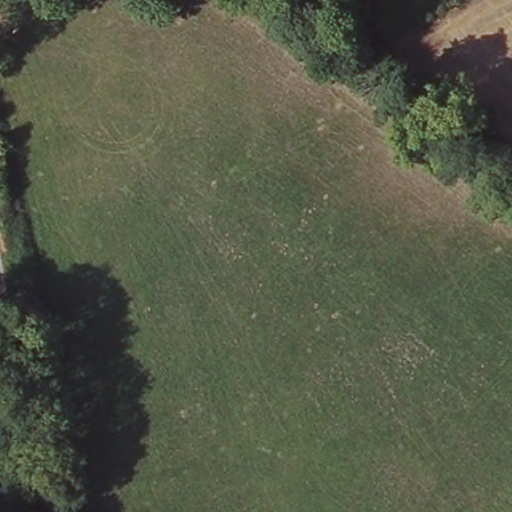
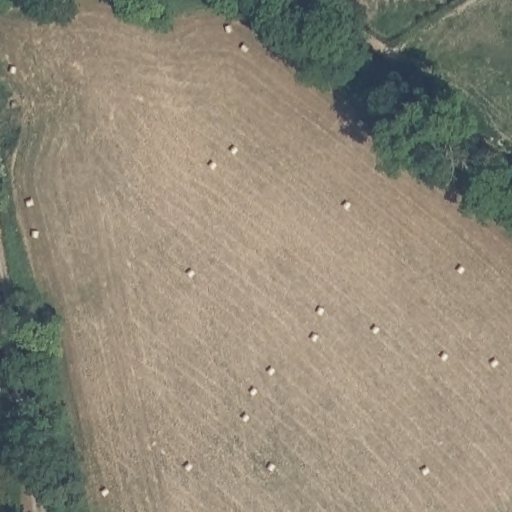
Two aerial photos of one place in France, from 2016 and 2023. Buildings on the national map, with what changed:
[]

